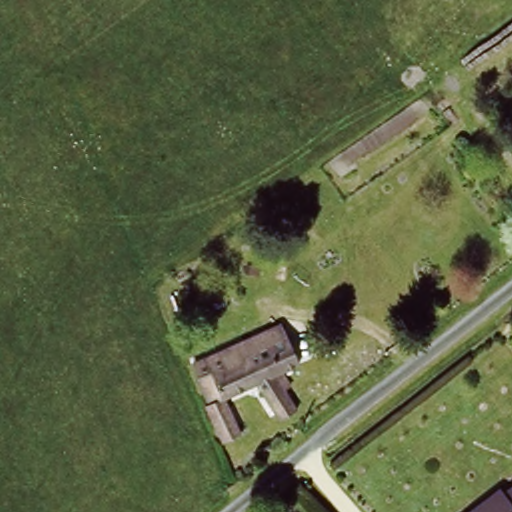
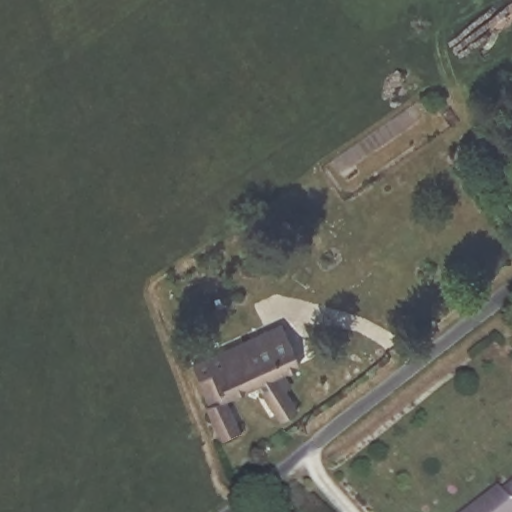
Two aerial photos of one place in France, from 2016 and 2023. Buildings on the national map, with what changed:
unchanged [(284,392),(293,415),(275,423),(256,383),(215,404),(233,444),(216,453),(199,412),(203,410),(186,373),(183,365),(220,350),(268,328),(275,325),(295,372),(288,376),(293,387),(284,392)]
unchanged [(512,489),(512,512),(471,512),(493,495),(497,500),(512,489)]

